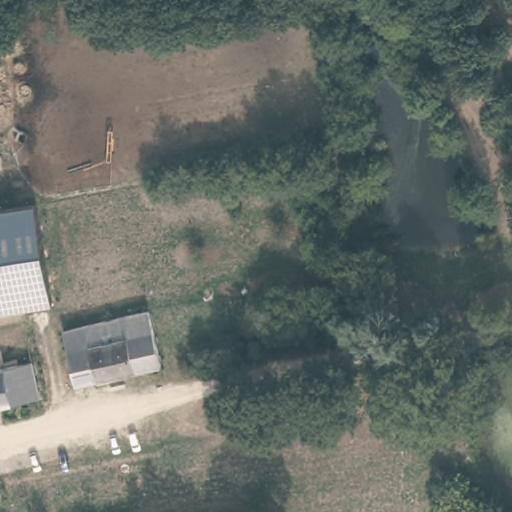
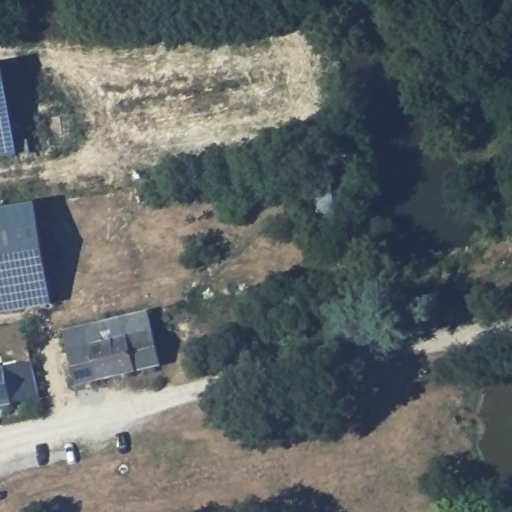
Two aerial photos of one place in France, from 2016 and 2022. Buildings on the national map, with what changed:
new [(0,161),(0,79),(13,158),(0,161)]
unchanged [(0,315),(0,210),(36,204),(51,306),(0,315)]
unchanged [(63,331),(149,311),(161,366),(76,385),(63,331)]
unchanged [(0,371),(33,364),(39,398),(0,407),(0,371)]

